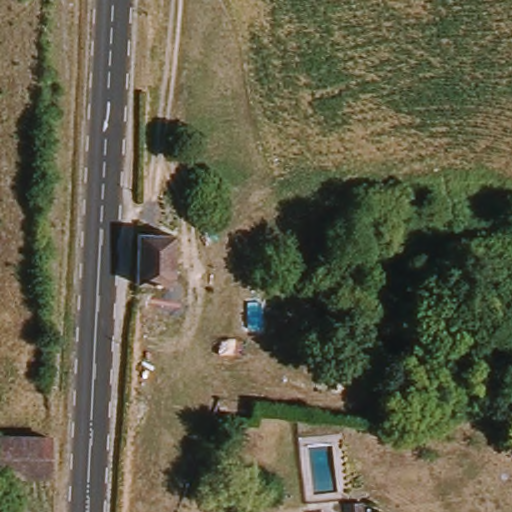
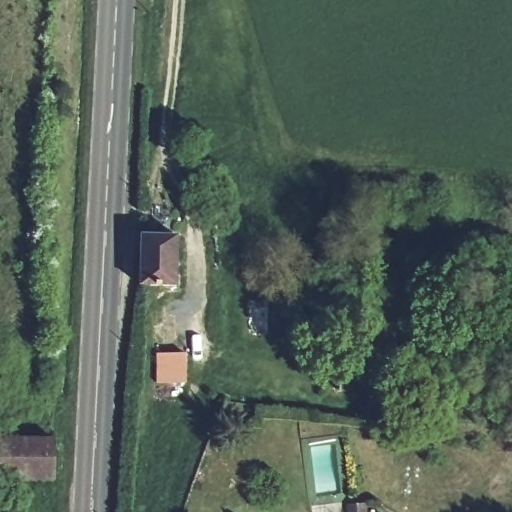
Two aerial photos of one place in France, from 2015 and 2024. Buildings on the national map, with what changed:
unchanged [(135,286),(138,236),(173,237),(172,287),(135,286)]
new [(190,354),(190,384),(153,384),(151,355),(190,354)]
unchanged [(48,442),(52,442),(51,480),(0,478),(0,441),(48,442)]
unchanged [(347,512),(347,507),(362,506),(362,512),(347,512)]

